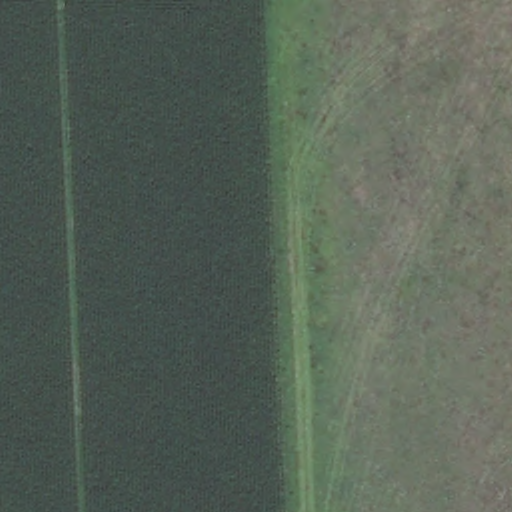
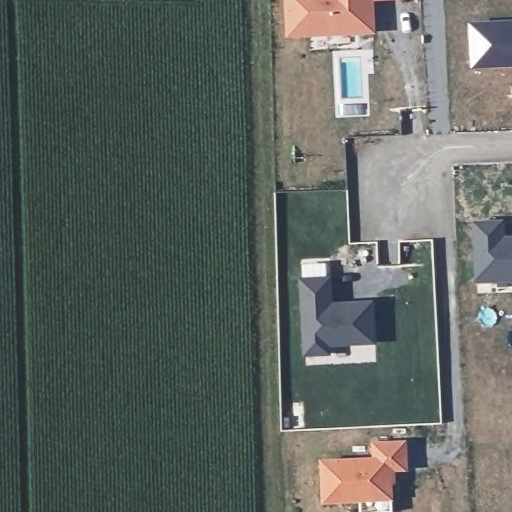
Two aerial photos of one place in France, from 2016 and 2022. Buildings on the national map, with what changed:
new [(357,27),(357,25),(312,27),(312,29),(289,31),(288,0),(373,0),(373,7),(374,27),(357,27)]
new [(501,222),(502,242),(509,242),(509,237),(512,237),(512,278),(504,278),(504,282),(476,283),(476,280),(473,223),(501,222)]
new [(326,293),(327,302),(368,301),(370,341),(324,342),(315,352),(300,352),(297,277),(326,276),(326,293)]
new [(360,457),(360,458),(375,457),(374,441),(405,439),(406,466),(390,467),(391,495),(361,496),(361,497),(324,499),(322,458),(360,457)]

